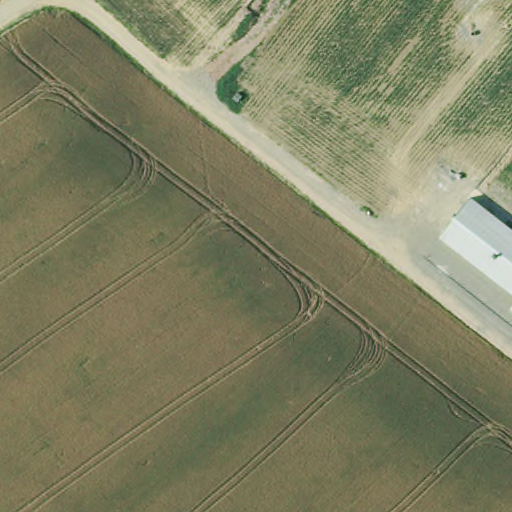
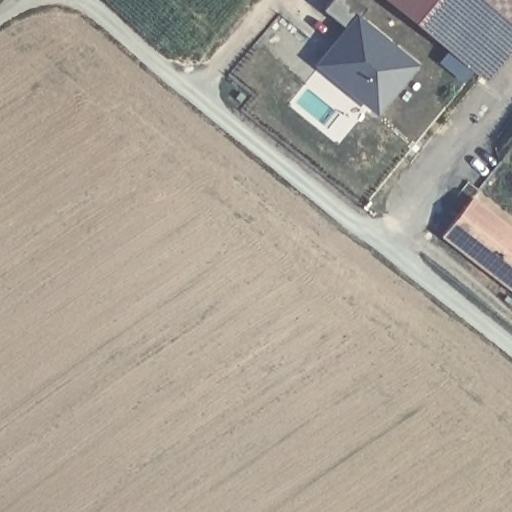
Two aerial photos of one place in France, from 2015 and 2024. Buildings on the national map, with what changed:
new [(383,0),(512,0),(512,54),(488,85),(383,0)]
new [(421,69),(378,119),(318,69),(355,16),(421,69)]
unchanged [(471,196),(512,228),(512,293),(441,239),(471,196)]

